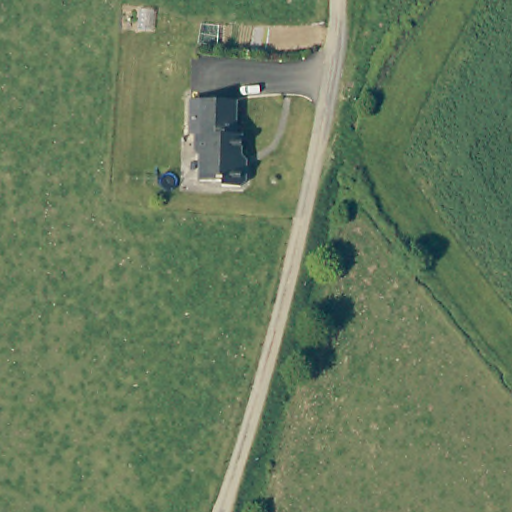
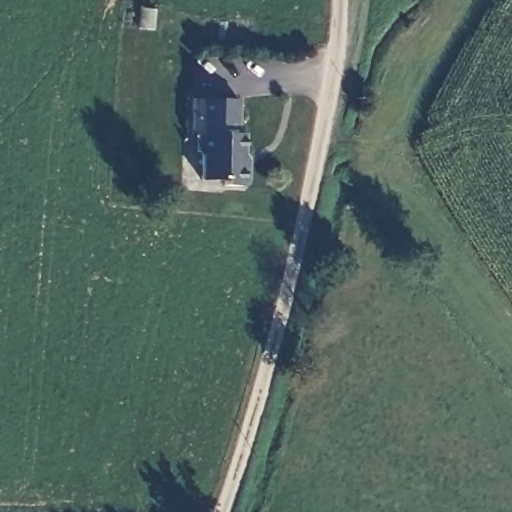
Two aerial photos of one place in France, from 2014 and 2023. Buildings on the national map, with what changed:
unchanged [(246,189),(226,189),(226,184),(203,184),(203,161),(199,156),(200,137),(192,137),(192,102),(239,102),(239,137),(245,137),(245,167),(250,173),(250,184),(246,189)]

